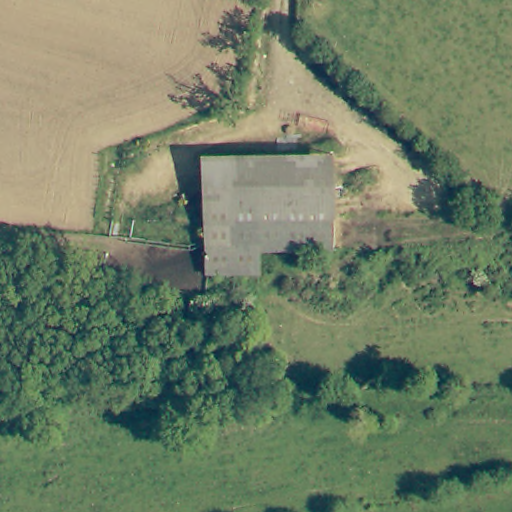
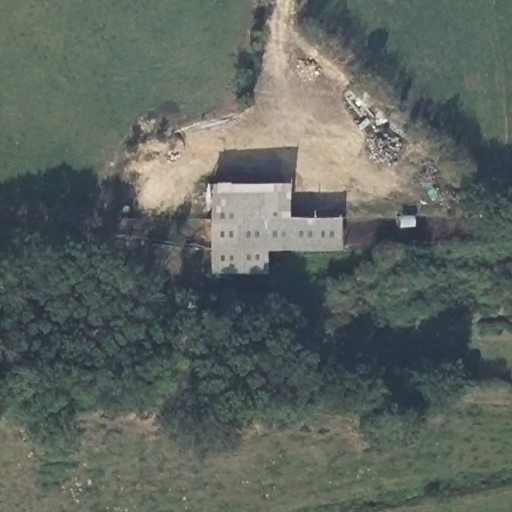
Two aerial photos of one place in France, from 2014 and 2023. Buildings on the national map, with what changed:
unchanged [(203,271),(207,186),(224,185),(328,182),(330,245),(255,249),(254,272),(207,271),(203,271)]

